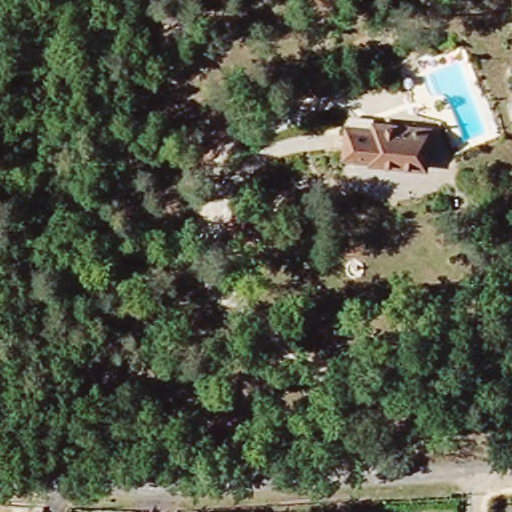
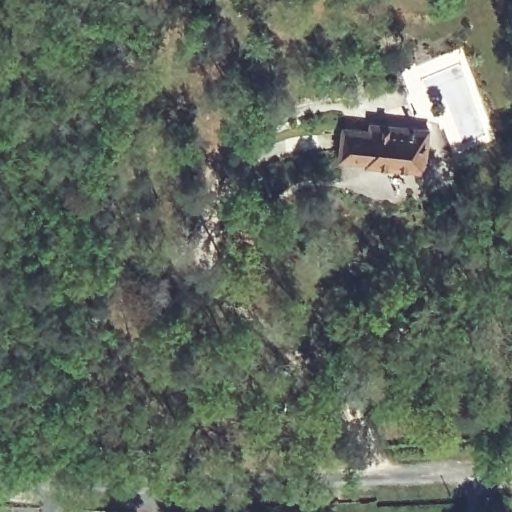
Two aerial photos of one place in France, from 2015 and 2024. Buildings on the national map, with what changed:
unchanged [(365,161),(340,159),(342,128),(372,131),(372,127),(429,132),(425,173),(365,167),(365,161)]

